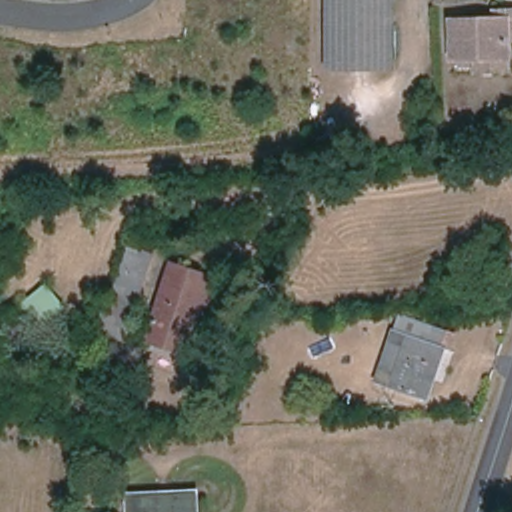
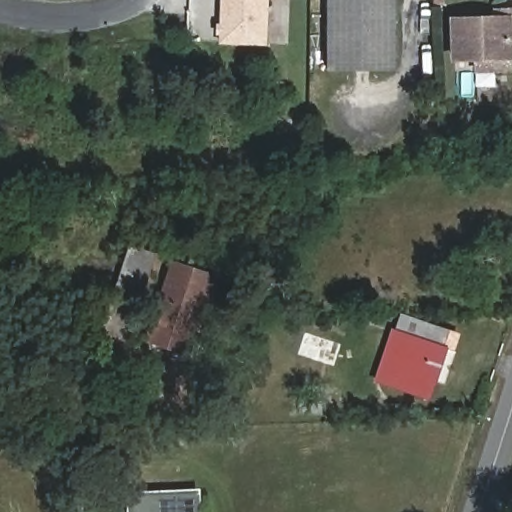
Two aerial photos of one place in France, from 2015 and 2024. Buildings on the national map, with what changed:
new [(267,47),(218,45),(220,0),(269,0),(267,47)]
unchanged [(394,71),(329,71),(330,0),(394,0),(394,71)]
unchanged [(512,59),(454,61),(453,20),(498,19),(498,11),(512,11),(512,40),(511,40),(512,59)]
unchanged [(126,338),(104,331),(131,248),(154,256),(126,338)]
unchanged [(187,354),(148,341),(174,263),(222,280),(213,307),(204,305),(187,354)]
unchanged [(40,330),(18,305),(49,281),(64,307),(40,330)]
unchanged [(429,399),(378,382),(395,332),(425,342),(430,327),(457,337),(452,352),(446,350),(429,399)]
unchanged [(130,512),(129,496),(198,492),(199,512),(130,512)]

